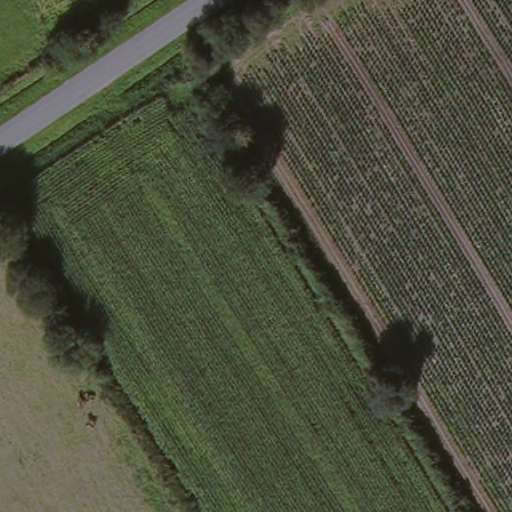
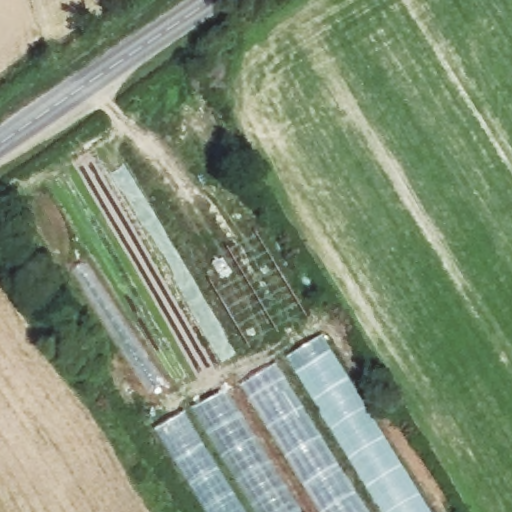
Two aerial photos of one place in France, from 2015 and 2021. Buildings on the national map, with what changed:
new [(323,331),(432,512),(384,512),(288,353),(323,331)]
new [(370,512),(322,512),(242,382),(276,360),(370,512)]
new [(243,512),(212,512),(137,393),(160,379),(243,512)]
new [(304,512),(258,512),(194,407),(228,388),(304,512)]

